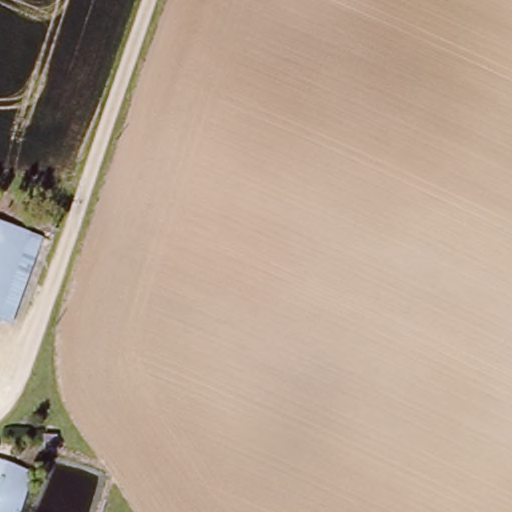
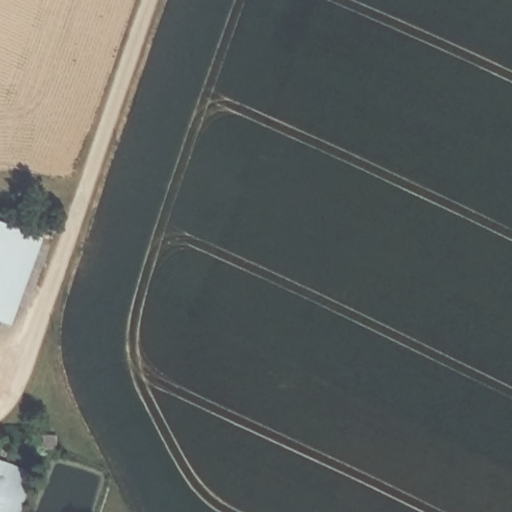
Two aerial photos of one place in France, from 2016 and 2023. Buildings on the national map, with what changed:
unchanged [(0,318),(0,223),(32,233),(0,318)]
unchanged [(47,238),(15,324),(0,319),(0,318),(32,233),(47,238)]
unchanged [(0,476),(0,458),(5,460),(0,476)]

